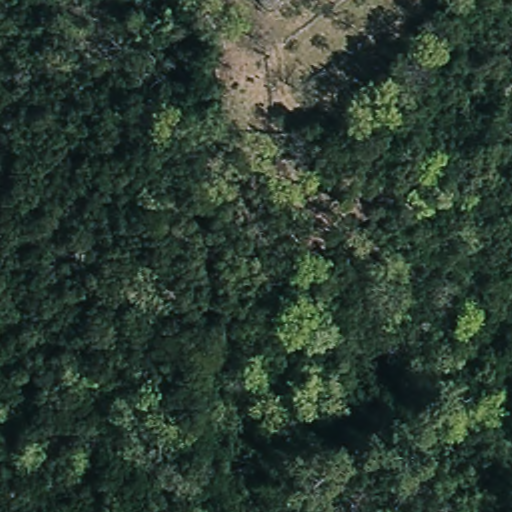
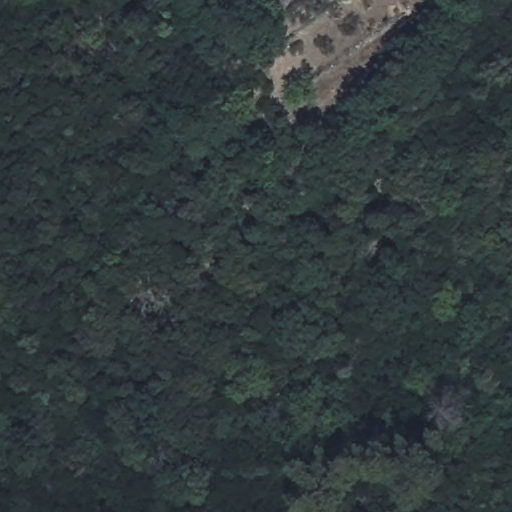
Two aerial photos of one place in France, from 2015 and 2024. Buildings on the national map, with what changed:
unchanged [(118,280),(123,268),(136,272),(133,283),(118,280)]

